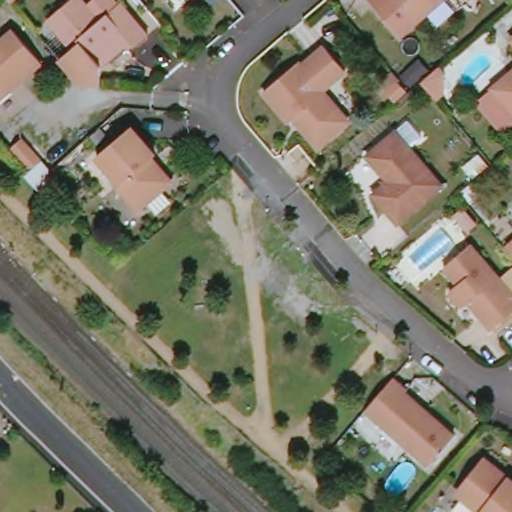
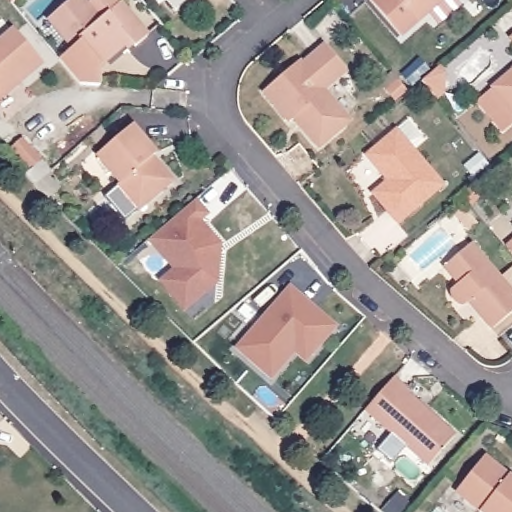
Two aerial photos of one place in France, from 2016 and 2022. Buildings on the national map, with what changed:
unchanged [(137,46),(132,41),(103,66),(83,43),(75,49),(50,20),(74,0),(85,0),(90,5),(96,0),(118,0),(121,4),(122,3),(150,35),(137,46)]
unchanged [(164,0),(172,0),(167,4),(164,0)]
unchanged [(403,39),(370,2),(372,0),(446,0),(418,24),(403,39)]
unchanged [(16,30),(44,64),(18,85),(0,102),(0,44),(16,30)]
unchanged [(75,49),(83,43),(103,66),(106,71),(102,87),(81,88),(60,63),(75,49)]
unchanged [(347,130),(322,152),(307,135),(307,129),(300,120),(293,127),(266,98),(300,67),(304,70),(327,50),(348,74),(335,86),(325,94),(348,122),(347,130)]
unchanged [(440,71),(445,78),(444,95),(438,100),(424,84),(440,71)]
unchanged [(512,74),(512,110),(495,89),(512,74)]
unchanged [(401,85),(410,94),(395,106),(387,96),(401,85)]
unchanged [(399,133),(400,134),(411,124),(425,139),(413,149),(445,188),(400,226),(375,197),(394,180),(390,175),(383,175),(369,159),(399,133)]
unchanged [(160,161),(153,167),(157,172),(160,169),(175,189),(141,217),(121,192),(123,190),(101,163),(136,133),(160,161)]
unchanged [(22,140),(42,163),(30,173),(11,150),(22,140)]
new [(179,274),(153,244),(198,204),(210,218),(203,225),(224,249),(213,258),(222,268),(221,287),(199,305),(190,314),(165,286),(175,278),(179,274)]
unchanged [(512,271),(512,317),(498,329),(475,301),(470,304),(469,304),(468,304),(467,304),(466,304),(465,303),(464,303),(463,303),(463,302),(462,302),(461,300),(460,299),(460,298),(459,297),(458,296),(458,294),(458,293),(458,292),(458,291),(459,290),(460,289),(465,284),(450,265),(477,243),(505,277),(512,271)]
new [(235,350),(290,287),(337,327),(305,366),(293,357),(271,381),(235,350)]
unchanged [(388,386),(396,376),(410,388),(407,391),(456,434),(428,466),(367,409),(388,386)]
unchanged [(498,472),(498,475),(505,481),(506,479),(512,483),(512,512),(474,512),(461,502),(459,489),(483,459),(498,472)]

